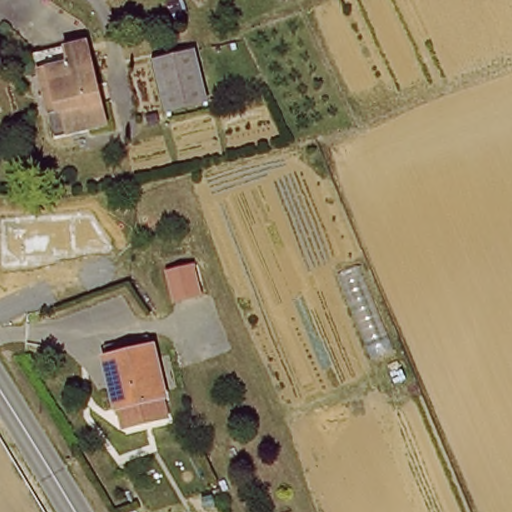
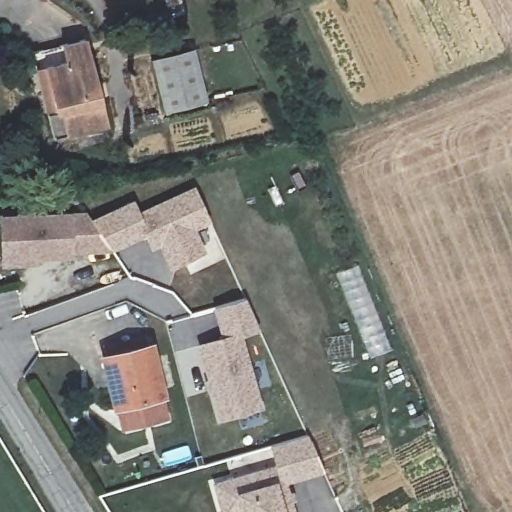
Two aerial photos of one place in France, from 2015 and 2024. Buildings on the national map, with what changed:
unchanged [(56,137),(35,49),(90,41),(110,126),(56,137)]
unchanged [(162,110),(149,62),(195,50),(208,98),(162,110)]
new [(0,215),(87,211),(93,220),(135,199),(140,210),(197,185),(212,223),(197,230),(208,251),(173,269),(161,246),(153,250),(145,233),(115,252),(75,254),(72,261),(45,260),(39,268),(2,267),(0,236),(0,215)]
new [(358,264),(392,349),(372,358),(337,272),(358,264)]
new [(198,344),(220,338),(214,309),(247,299),(263,330),(244,336),(265,409),(219,421),(198,344)]
unchanged [(100,352),(154,339),(169,387),(167,387),(172,406),(121,419),(116,399),(114,400),(100,352)]
new [(276,462),(271,446),(309,435),(325,472),(288,484),(296,512),(241,512),(241,510),(237,512),(221,512),(213,483),(276,462)]

